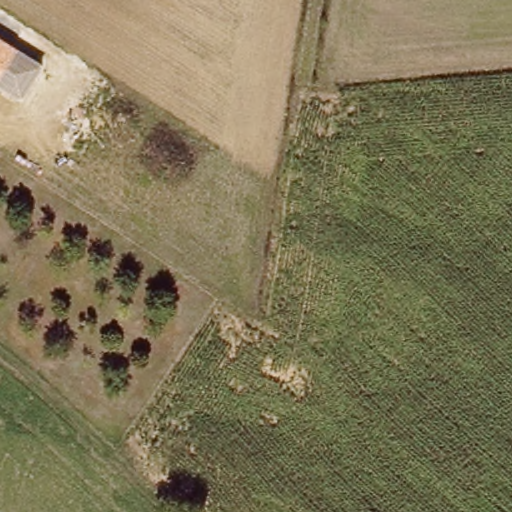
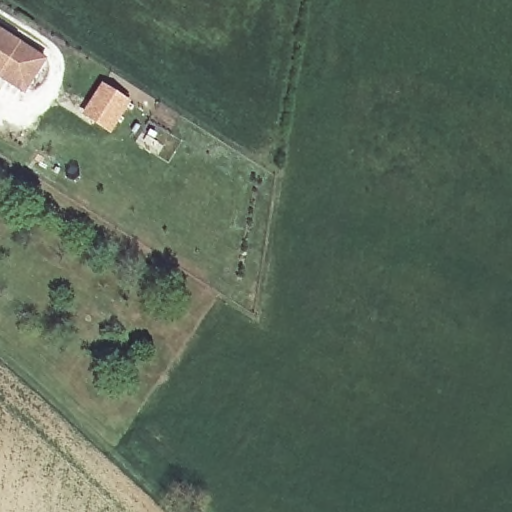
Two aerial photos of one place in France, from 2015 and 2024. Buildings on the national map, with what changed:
unchanged [(46,57),(24,92),(0,77),(0,28),(46,57)]
new [(81,114),(101,83),(129,102),(108,134),(81,114)]

